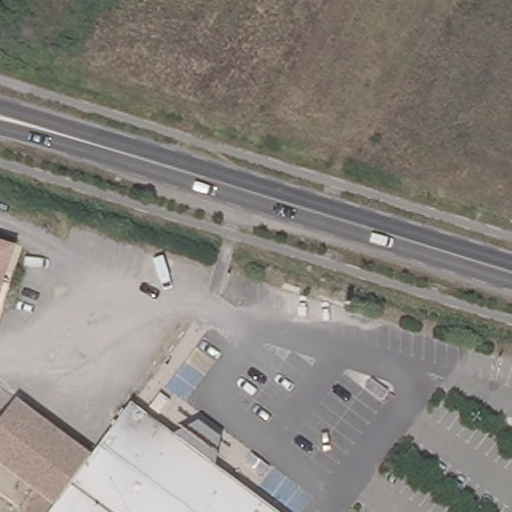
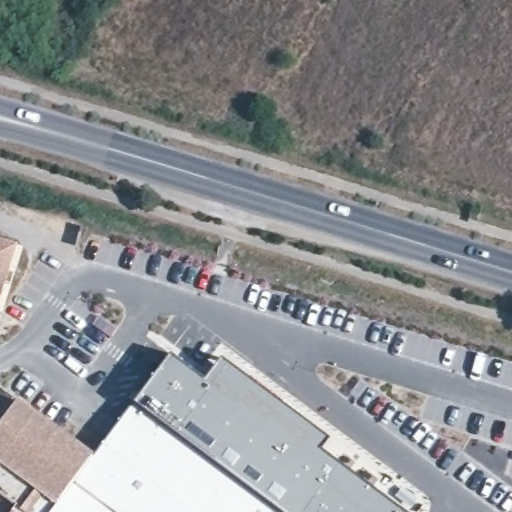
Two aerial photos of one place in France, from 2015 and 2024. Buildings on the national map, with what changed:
unchanged [(0,287),(0,242),(13,246),(0,287)]
new [(171,355),(206,380),(223,357),(329,438),(321,449),(405,512),(282,512),(136,403),(171,355)]
unchanged [(0,497),(0,428),(22,398),(95,453),(52,512),(10,512),(13,506),(0,497)]
unchanged [(108,437),(134,401),(282,512),(52,512),(95,453),(108,437)]

